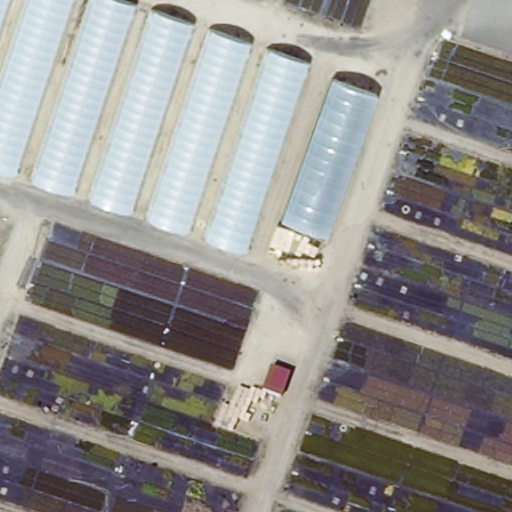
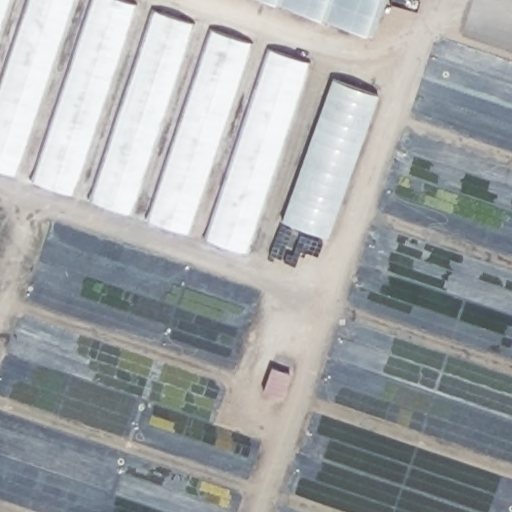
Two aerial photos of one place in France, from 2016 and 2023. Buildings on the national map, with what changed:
unchanged [(242,257),(0,174),(0,0),(116,0),(305,64),(242,257)]
new [(273,0),(382,0),(370,33),(273,0)]
unchanged [(385,99),(335,244),(280,227),(330,81),(385,99)]

